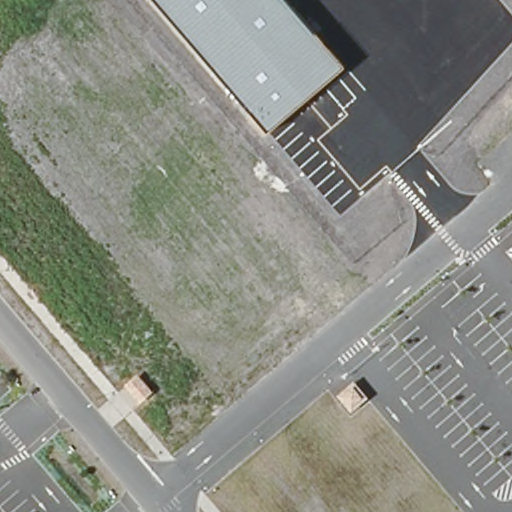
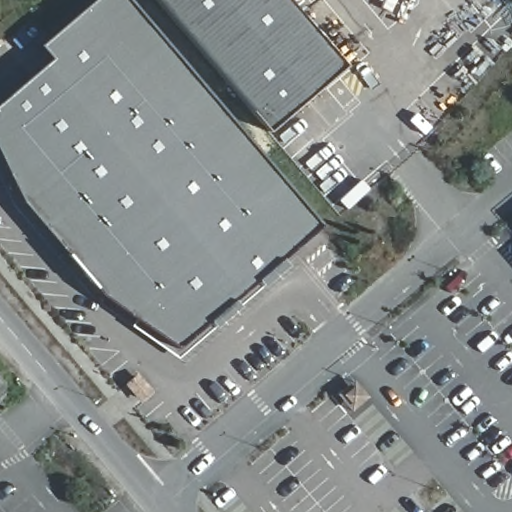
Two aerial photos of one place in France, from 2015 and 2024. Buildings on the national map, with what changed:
new [(166,349),(90,292),(18,208),(0,170),(0,95),(41,57),(29,42),(86,0),(123,0),(309,222),(166,349)]
unchanged [(155,0),(287,0),(315,34),(318,31),(347,66),(268,133),(155,0)]
unchanged [(140,403),(124,385),(136,372),(153,392),(140,403)]
unchanged [(349,413),(333,395),(352,378),(368,398),(349,413)]

